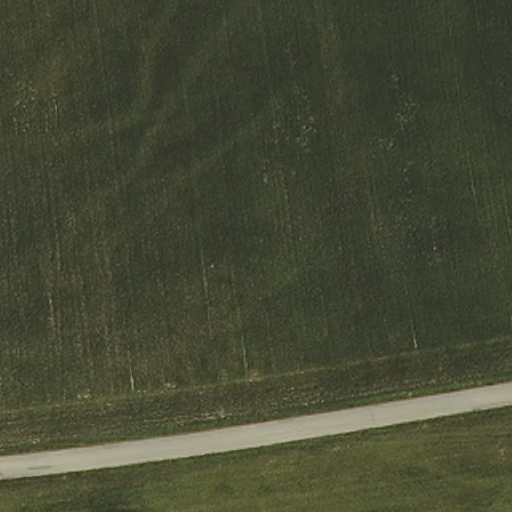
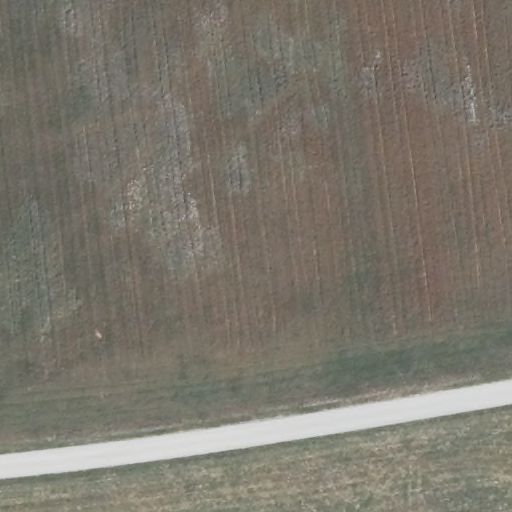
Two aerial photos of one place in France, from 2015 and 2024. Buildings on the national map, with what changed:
[]

